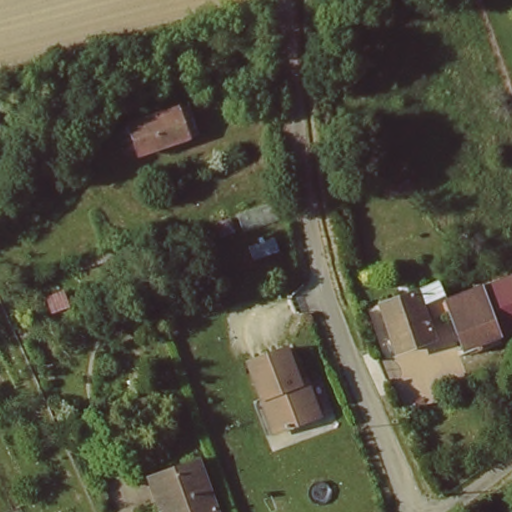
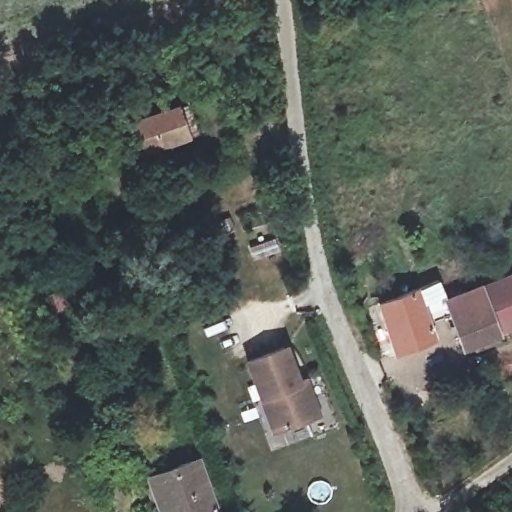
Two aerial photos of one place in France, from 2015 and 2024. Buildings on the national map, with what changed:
unchanged [(127,129),(175,112),(186,107),(195,135),(184,139),(134,156),(127,129)]
unchanged [(444,303),(511,282),(512,284),(512,328),(461,348),(451,319),(425,327),(431,342),(396,353),(382,308),(438,292),(444,303)]
unchanged [(64,291),(71,308),(54,316),(47,297),(64,291)]
unchanged [(264,410),(251,374),(289,360),(301,394),(308,392),(321,427),(283,441),(277,443),(264,410)]
unchanged [(170,510),(165,512),(151,483),(197,459),(222,512),(171,512),(170,510)]

